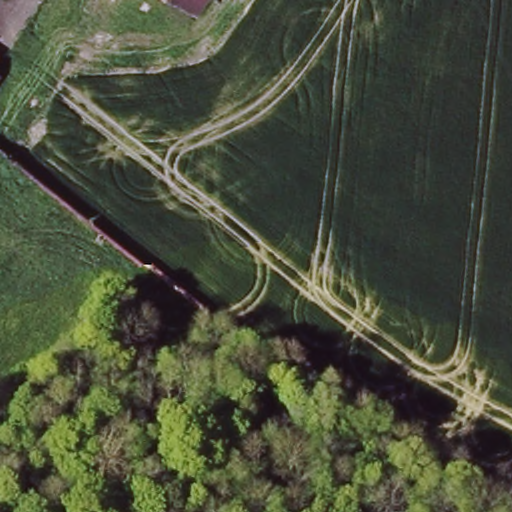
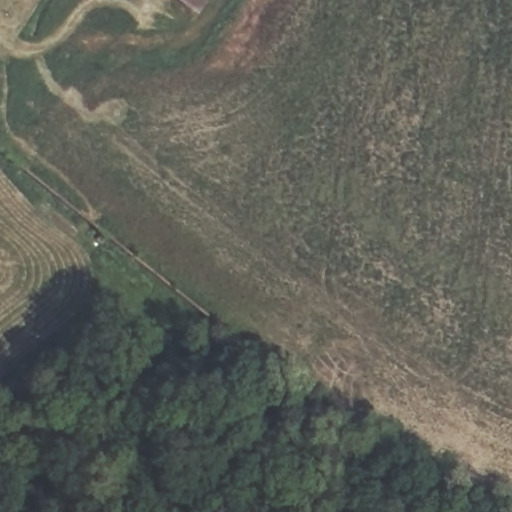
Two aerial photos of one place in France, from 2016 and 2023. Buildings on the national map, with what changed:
unchanged [(200,14),(178,0),(209,0),(200,14)]
unchanged [(0,61),(0,50),(5,53),(0,61)]
unchanged [(6,74),(0,83),(0,71),(6,74)]

